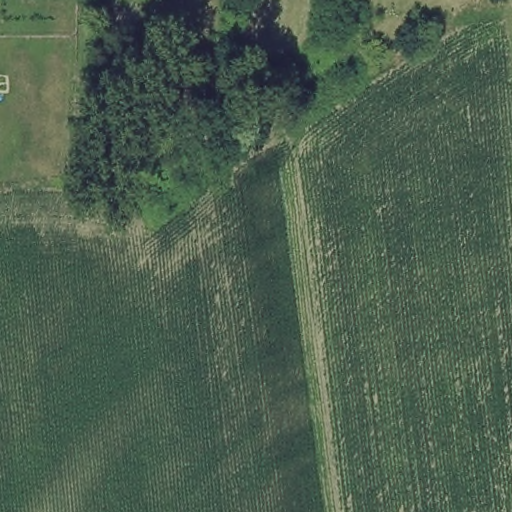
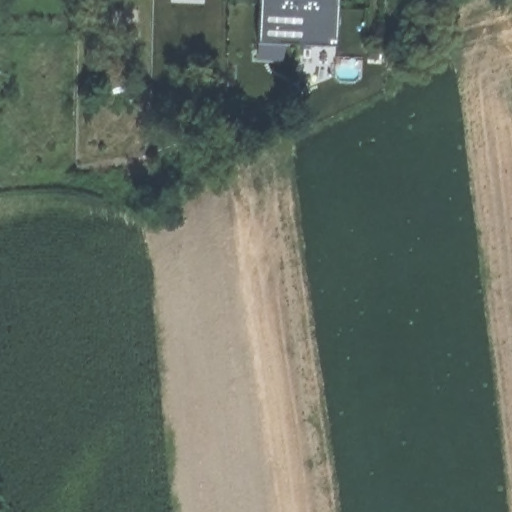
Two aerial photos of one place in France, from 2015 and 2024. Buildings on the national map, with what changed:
new [(338,0),(336,46),(257,42),(259,0),(338,0)]

